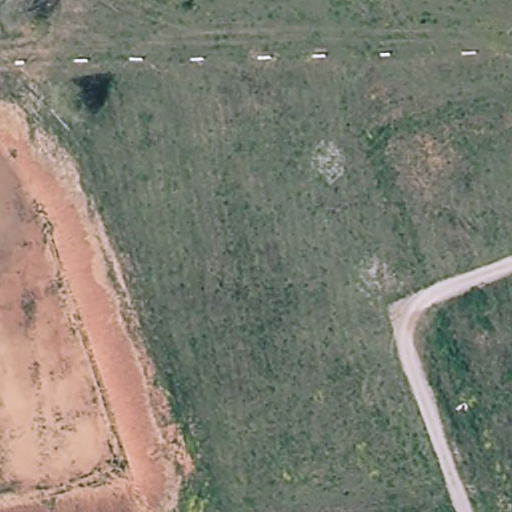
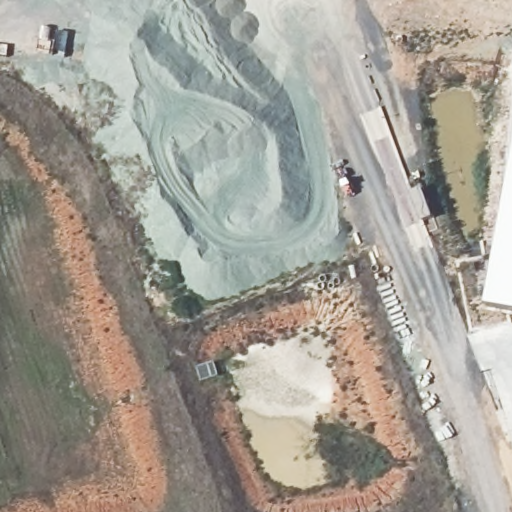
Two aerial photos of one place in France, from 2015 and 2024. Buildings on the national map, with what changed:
new [(512,173),(512,311),(487,306),(512,173)]

